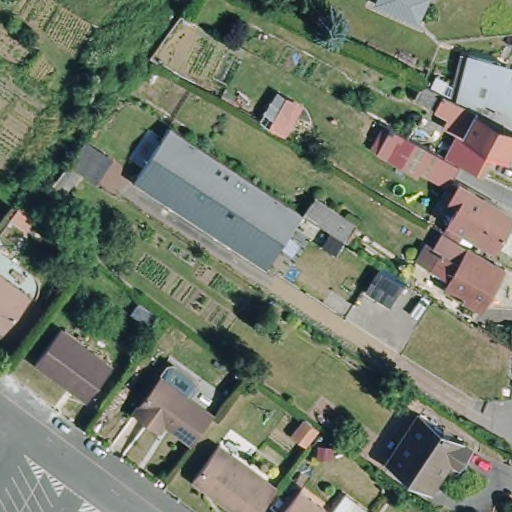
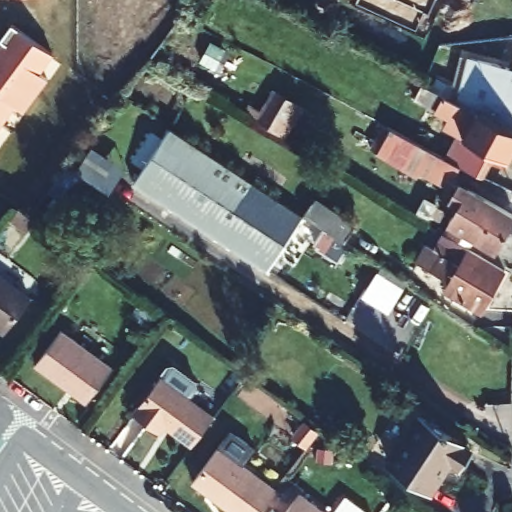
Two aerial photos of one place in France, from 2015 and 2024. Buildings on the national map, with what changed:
unchanged [(375,5),(376,0),(430,0),(423,15),(418,24),(375,5)]
new [(56,53),(44,73),(55,80),(31,111),(20,105),(0,129),(0,45),(16,23),(56,53)]
unchanged [(502,67),(500,72),(512,76),(512,111),(509,121),(490,116),(492,109),(450,97),(461,56),(502,67)]
unchanged [(449,132),(455,123),(429,110),(433,102),(426,97),(430,90),(512,131),(512,138),(502,159),(487,152),(451,134),(449,132)]
unchanged [(199,220),(134,178),(171,123),(303,209),(267,265),(199,220)]
unchanged [(401,139),(408,125),(411,127),(433,138),(427,153),(401,139)]
unchanged [(451,134),(487,152),(474,178),(472,177),(438,159),(451,134)]
unchanged [(71,165),(85,142),(112,160),(97,183),(71,165)]
new [(0,149),(0,146),(1,147),(0,149)]
unchanged [(459,191),(510,218),(492,251),(441,223),(455,198),(459,191)]
unchanged [(312,196),(355,224),(346,238),(303,209),(312,196)]
unchanged [(498,272),(474,312),(438,290),(444,281),(420,268),(410,262),(421,245),(455,264),(462,250),(498,272)]
unchanged [(0,323),(0,265),(27,285),(0,323)]
unchanged [(112,364),(88,398),(38,362),(64,328),(112,364)]
unchanged [(151,425),(133,411),(161,375),(219,417),(197,445),(168,423),(161,432),(151,425)]
unchanged [(420,415),(470,449),(460,466),(450,461),(431,491),(390,463),(420,415)]
unchanged [(277,486),(258,512),(239,512),(190,476),(215,441),(277,486)]
unchanged [(328,512),(284,512),(300,491),(328,512)]

